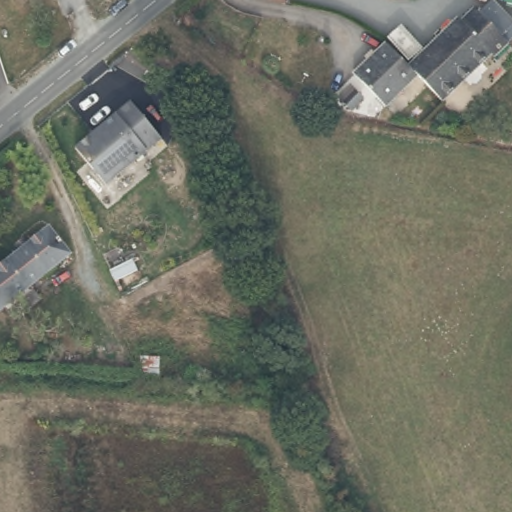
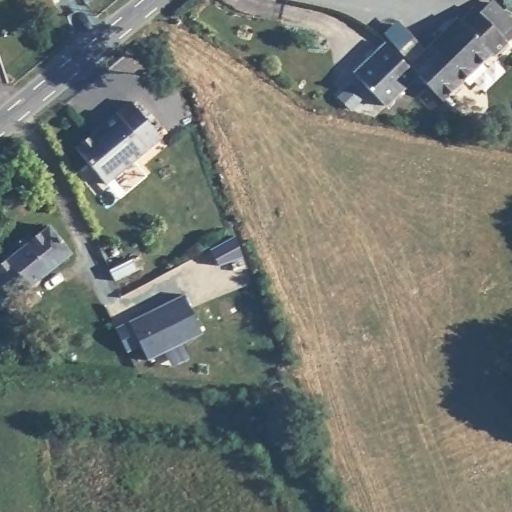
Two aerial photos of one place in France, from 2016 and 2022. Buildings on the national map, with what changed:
unchanged [(463,18),(468,23),(482,9),(487,15),(500,3),(512,15),(512,29),(505,35),(511,41),(494,56),(490,51),(443,96),(420,74),(411,62),(463,18)]
unchanged [(355,73),(387,44),(391,42),(411,62),(420,74),(396,94),(384,104),(370,89),(355,73)]
unchanged [(94,135),(97,139),(119,121),(116,117),(131,104),(161,141),(106,187),(75,150),(94,135)]
unchanged [(46,221),(68,247),(0,307),(0,261),(46,221)]
new [(183,294),(202,331),(181,343),(190,358),(172,367),(164,352),(147,360),(140,346),(127,352),(115,327),(183,294)]
demolished [(153,374),(153,355),(175,357),(173,374),(153,374)]

